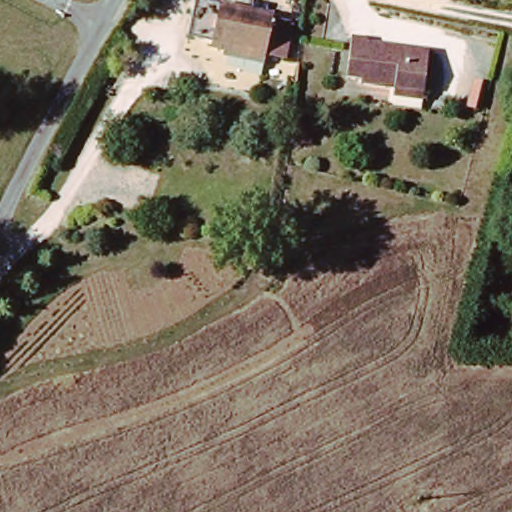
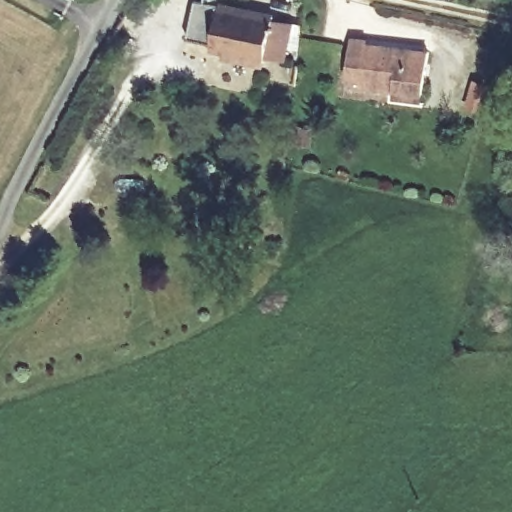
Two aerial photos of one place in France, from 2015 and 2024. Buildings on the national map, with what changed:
unchanged [(221,65),(223,52),(203,48),(206,41),(186,36),(193,0),(197,0),(201,1),(202,0),(219,0),(219,6),(264,17),(264,27),(279,31),(279,40),(293,42),(288,64),(256,57),(255,61),(253,72),(221,65)]
unchanged [(394,110),(395,95),(370,92),(370,85),(347,83),(351,47),(374,50),(374,56),(427,62),(424,99),(423,113),(394,110)]

